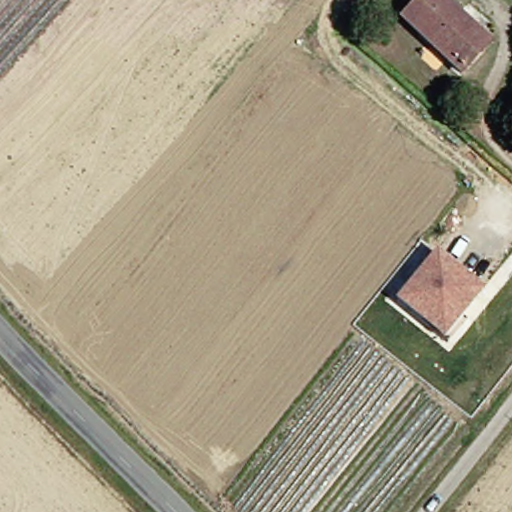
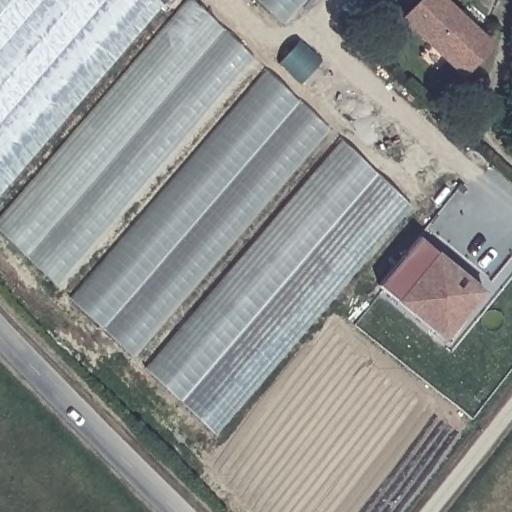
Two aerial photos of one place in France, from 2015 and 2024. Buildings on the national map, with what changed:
new [(0,0),(170,0),(0,194),(0,0)]
new [(0,231),(0,216),(186,0),(192,0),(253,59),(55,285),(0,231)]
new [(255,0),(302,0),(281,25),(255,0)]
unchanged [(468,66),(410,10),(420,0),(454,0),(494,39),(468,66)]
new [(299,85),(275,63),(297,39),(320,62),(299,85)]
new [(73,298),(266,69),(327,129),(136,359),(73,298)]
new [(213,435),(142,369),(341,140),(411,209),(213,435)]
new [(396,304),(378,287),(420,237),(438,253),(396,304)]
unchanged [(489,292),(449,344),(396,304),(438,253),(489,292)]

